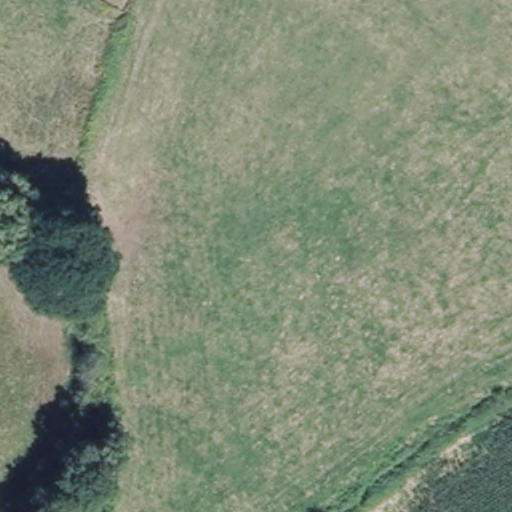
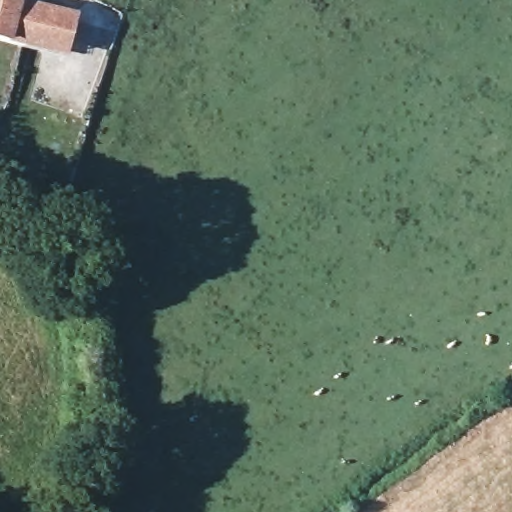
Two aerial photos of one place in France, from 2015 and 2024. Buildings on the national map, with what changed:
new [(67,56),(0,40),(0,0),(28,0),(77,12),(67,56)]

